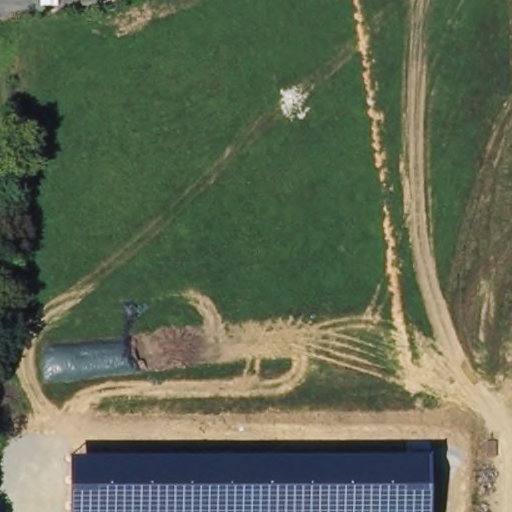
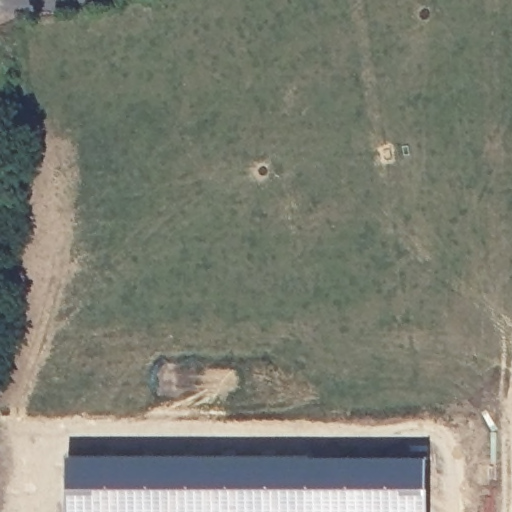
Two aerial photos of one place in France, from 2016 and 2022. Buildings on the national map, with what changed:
unchanged [(427,457),(428,512),(69,512),(69,456),(427,457)]

